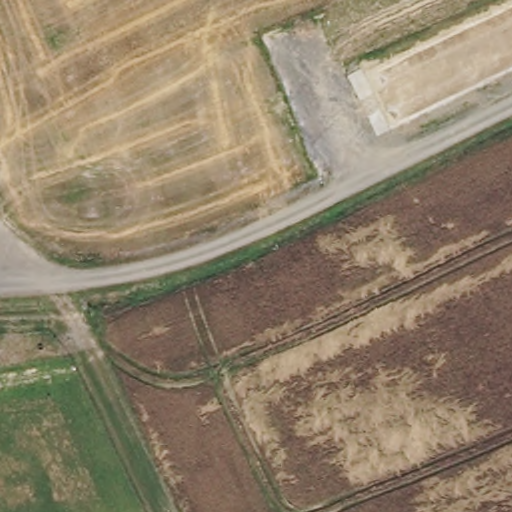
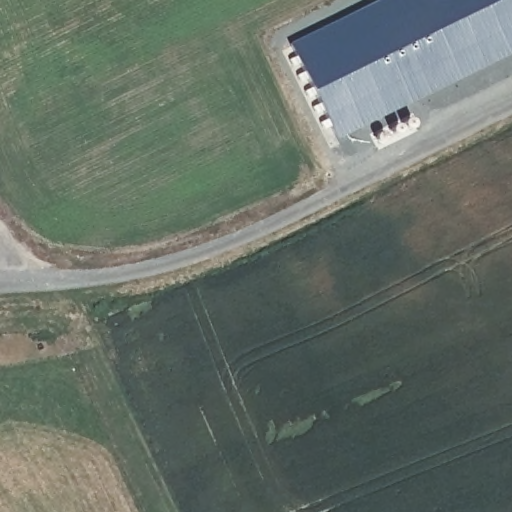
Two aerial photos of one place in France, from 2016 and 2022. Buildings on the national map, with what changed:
new [(289,43),(378,0),(512,0),(512,53),(335,140),(289,43)]
demolished [(512,0),(512,75),(393,132),(363,71),(511,0),(512,0)]
new [(415,125),(414,129),(381,146),(375,145),(373,140),(375,136),(410,119),(415,125)]

